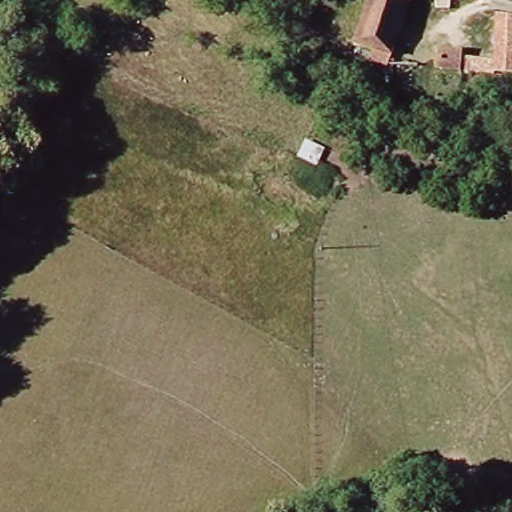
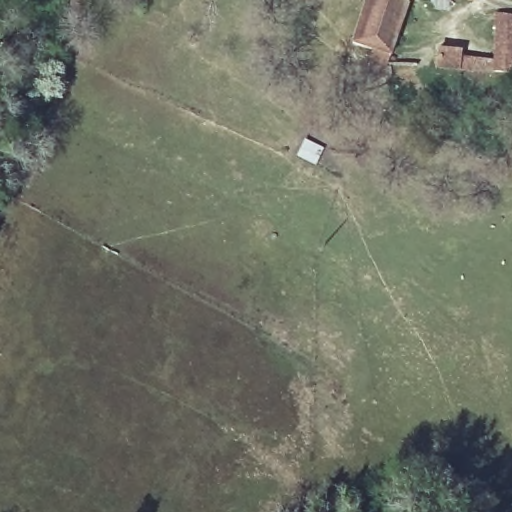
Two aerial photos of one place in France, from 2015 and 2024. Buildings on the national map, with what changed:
unchanged [(369,54),(374,42),(354,37),(366,0),(409,0),(389,59),(369,54)]
unchanged [(441,67),(442,55),(459,56),(463,60),(491,60),(496,14),(512,14),(512,73),(441,67)]

